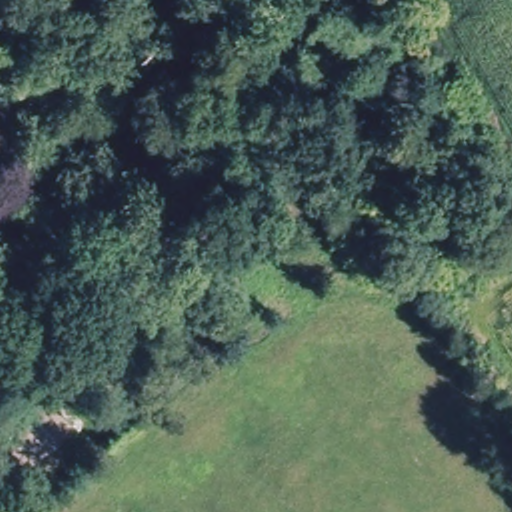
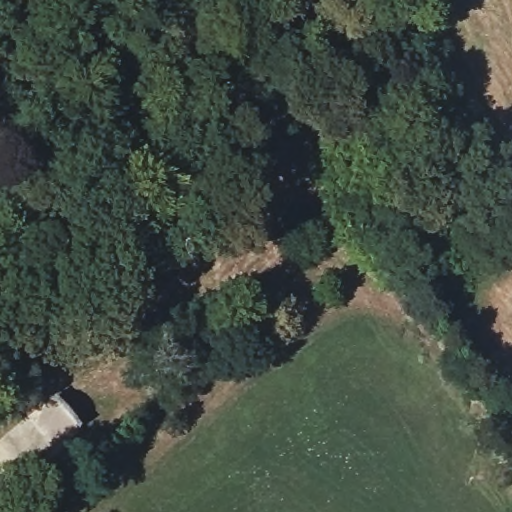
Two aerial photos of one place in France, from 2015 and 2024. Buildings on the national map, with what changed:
unchanged [(52,396),(55,393),(81,425),(79,427),(52,396)]

